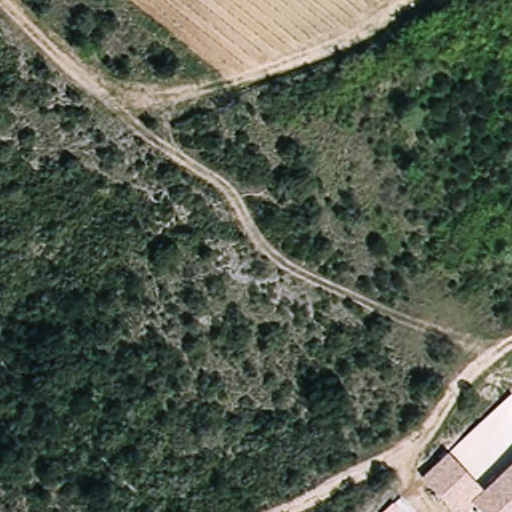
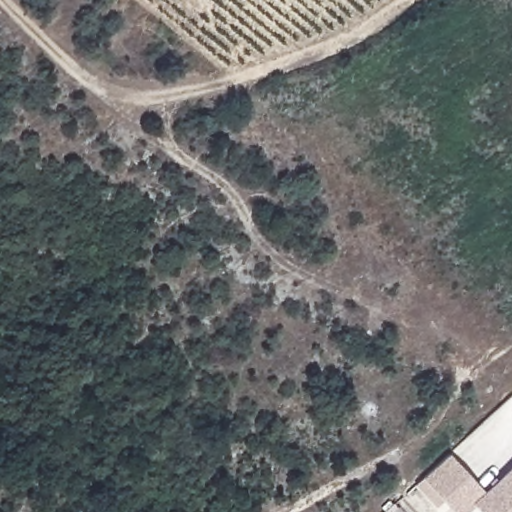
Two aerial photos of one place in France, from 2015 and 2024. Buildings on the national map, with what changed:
unchanged [(448,454),(484,492),(512,466),(512,512),(482,512),(474,504),(467,512),(454,512),(422,479),(448,454)]

